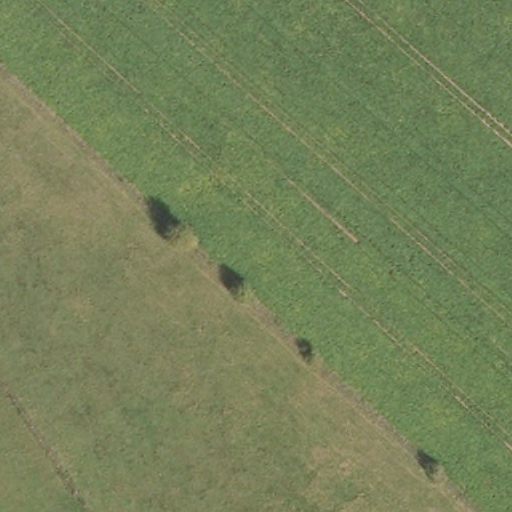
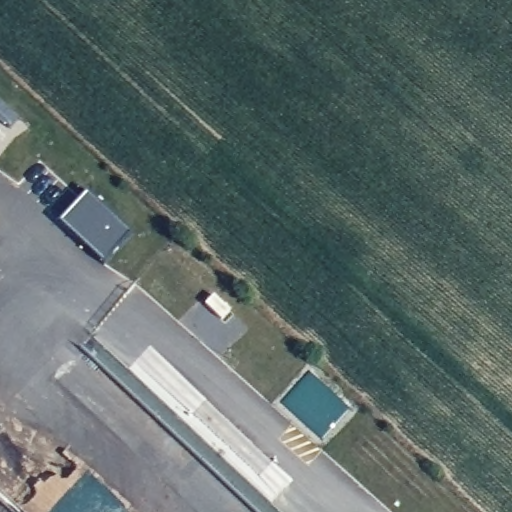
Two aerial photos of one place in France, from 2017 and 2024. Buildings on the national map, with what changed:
new [(59,222),(86,193),(131,234),(105,265),(59,222)]

